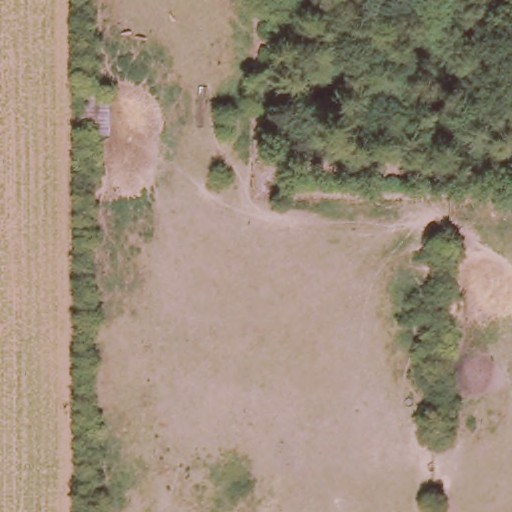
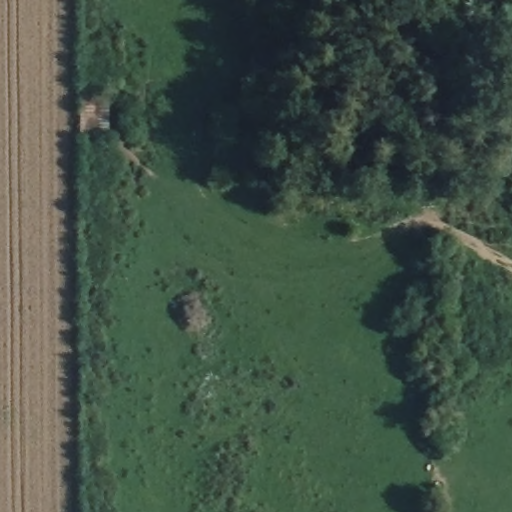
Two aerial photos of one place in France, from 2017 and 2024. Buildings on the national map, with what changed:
unchanged [(78,91),(110,91),(110,135),(77,134),(78,91)]

